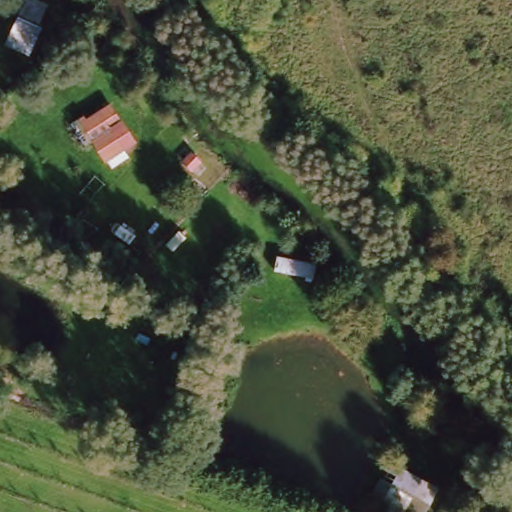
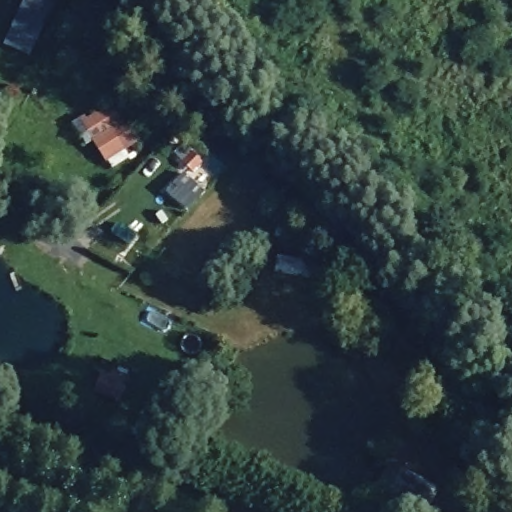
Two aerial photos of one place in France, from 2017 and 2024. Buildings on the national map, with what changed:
unchanged [(23,0),(30,0),(51,9),(32,53),(5,43),(23,0)]
unchanged [(440,494),(430,510),(415,501),(409,512),(384,512),(368,503),(394,463),(440,494)]

